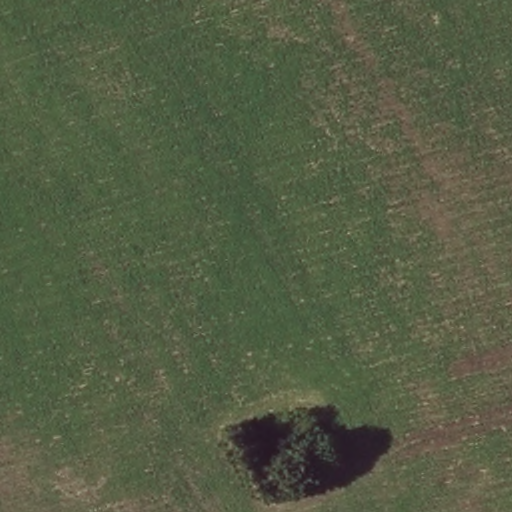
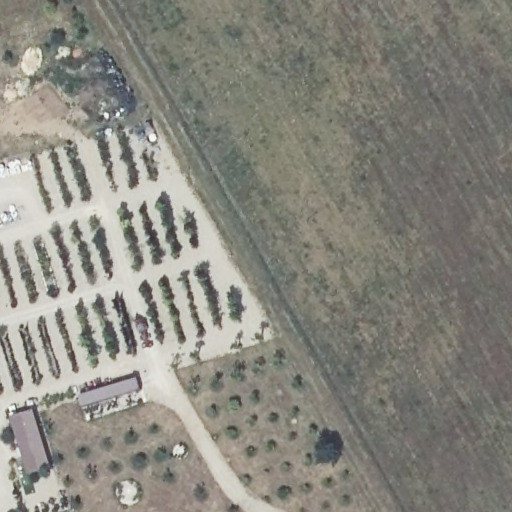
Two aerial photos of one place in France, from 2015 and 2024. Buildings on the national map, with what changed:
new [(41,416),(54,473),(27,478),(14,421),(41,416)]

